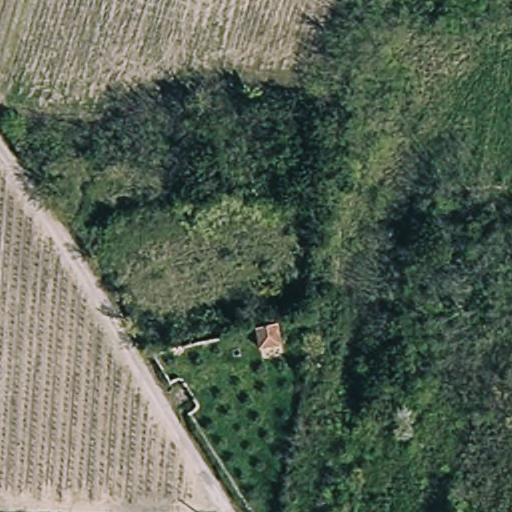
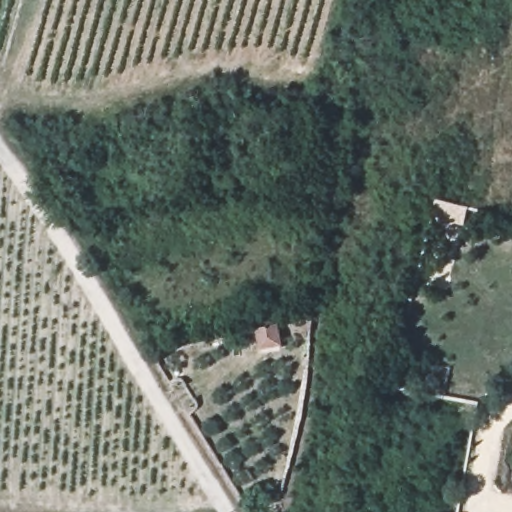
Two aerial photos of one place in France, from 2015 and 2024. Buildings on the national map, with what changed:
unchanged [(283,344),(260,349),(254,329),(278,323),(283,344)]

